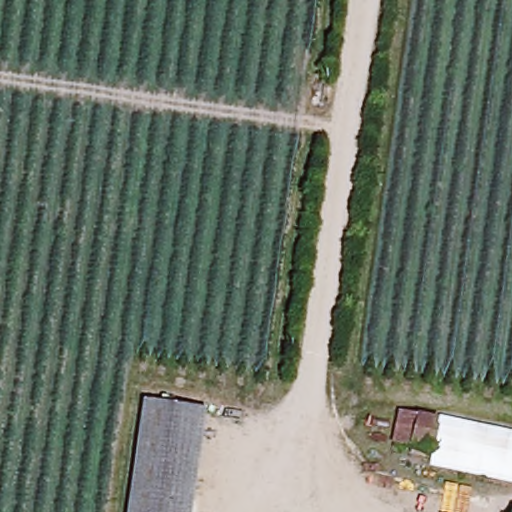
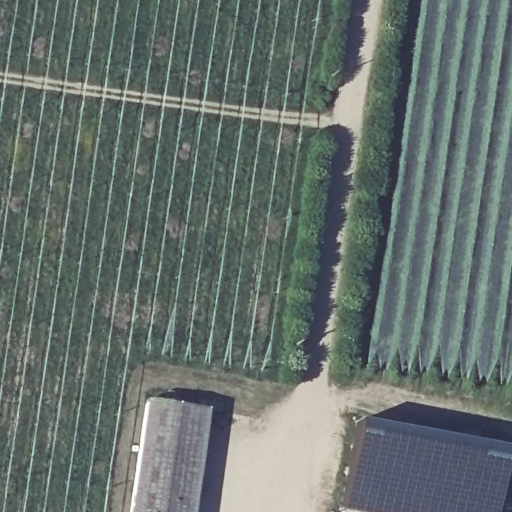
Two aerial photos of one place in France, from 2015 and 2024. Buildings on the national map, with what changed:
unchanged [(202,410),(189,512),(128,512),(144,400),(202,410)]
demolished [(427,450),(389,441),(398,411),(435,420),(427,450)]
new [(507,450),(495,512),(349,512),(339,510),(356,420),(507,450)]

